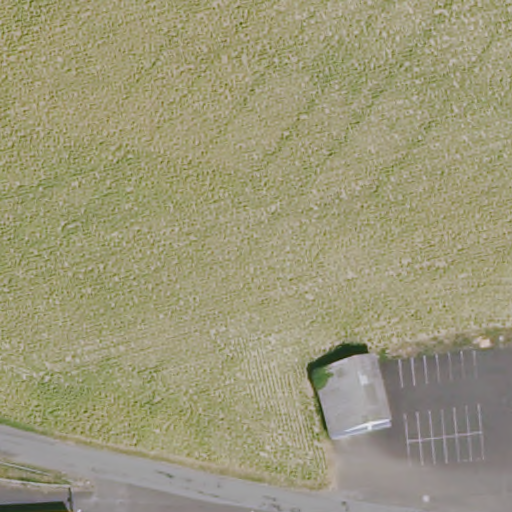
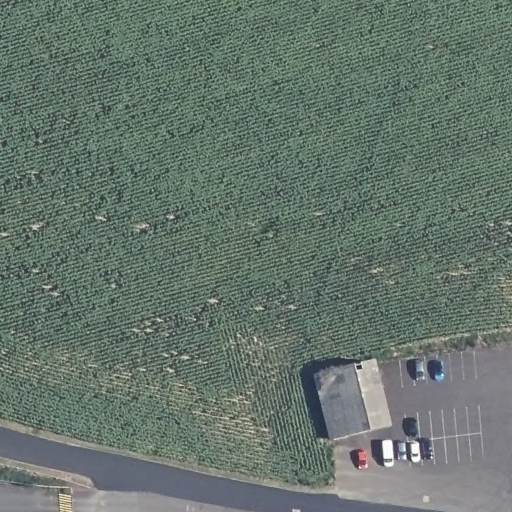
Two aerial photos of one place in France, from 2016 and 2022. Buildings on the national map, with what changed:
unchanged [(316,368),(372,358),(387,425),(330,438),(316,368)]

